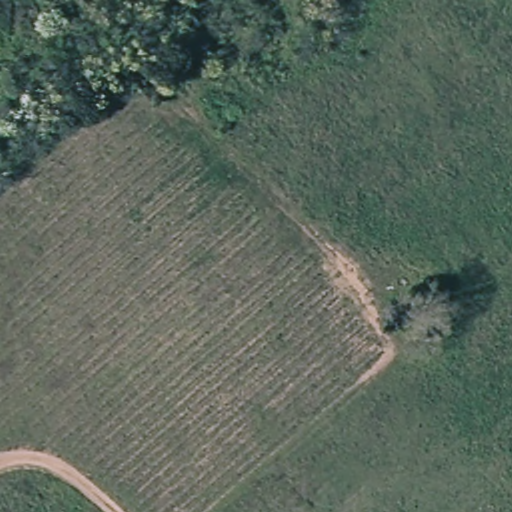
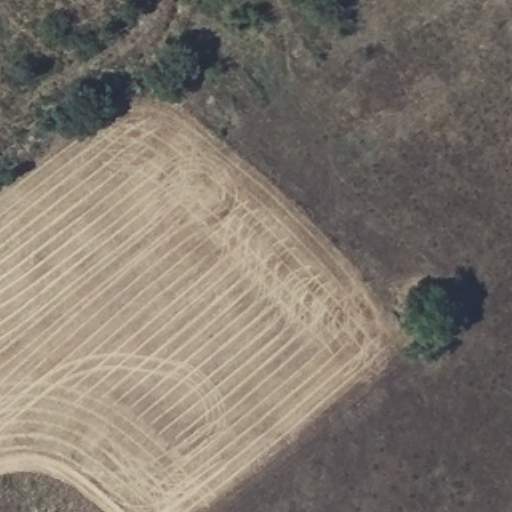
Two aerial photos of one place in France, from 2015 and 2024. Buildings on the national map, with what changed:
unchanged [(428,309),(413,325),(398,305),(413,293),(428,309)]

